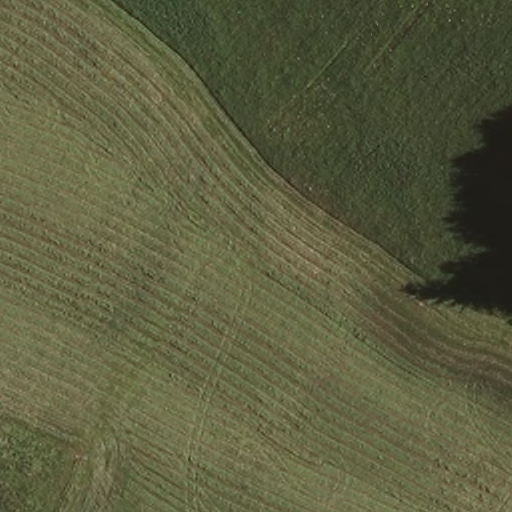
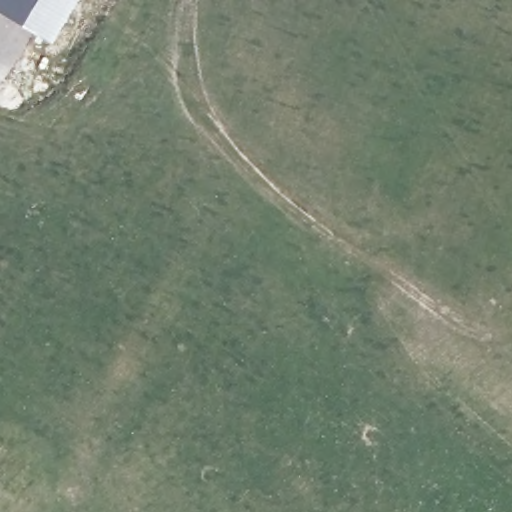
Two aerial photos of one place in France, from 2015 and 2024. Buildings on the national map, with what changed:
new [(0,13),(0,0),(79,0),(54,44),(0,13)]

